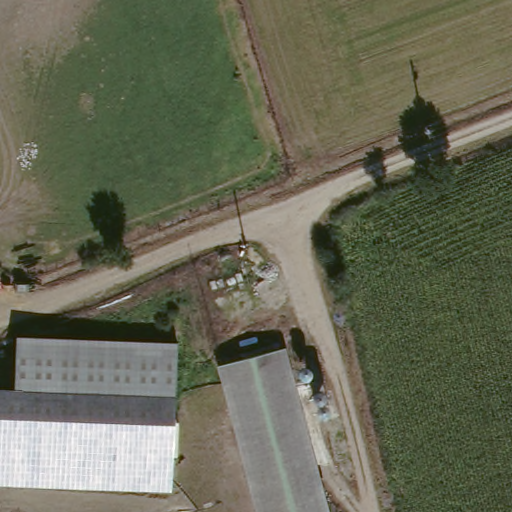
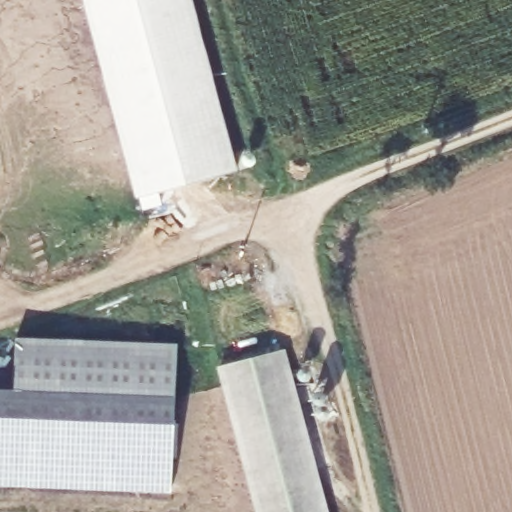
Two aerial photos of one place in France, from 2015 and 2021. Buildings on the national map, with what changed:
new [(235,173),(138,199),(86,0),(189,0),(235,173)]
unchanged [(13,389),(16,338),(176,344),(171,396),(13,389)]
unchanged [(320,512),(255,512),(219,369),(278,354),(320,512)]
unchanged [(167,490),(0,484),(0,389),(171,396),(167,490)]

